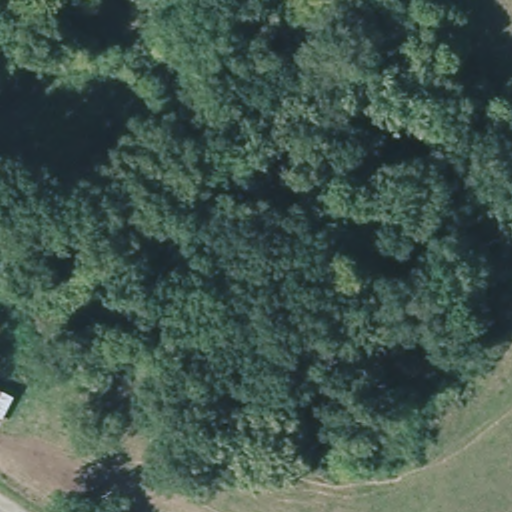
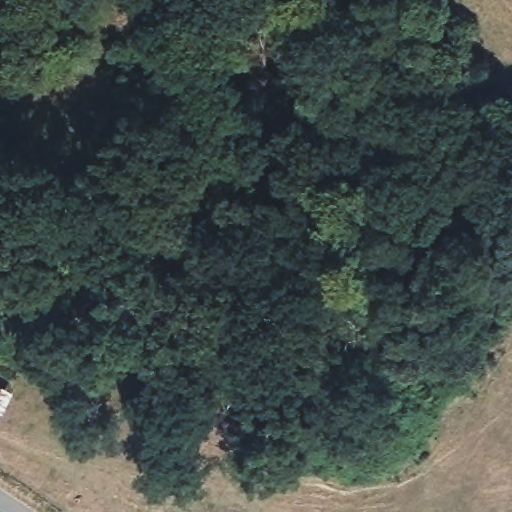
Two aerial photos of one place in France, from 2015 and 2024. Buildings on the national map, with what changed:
unchanged [(0,421),(0,380),(15,388),(0,421)]

